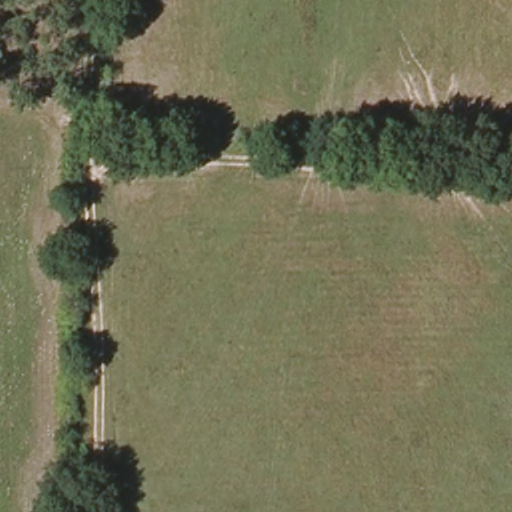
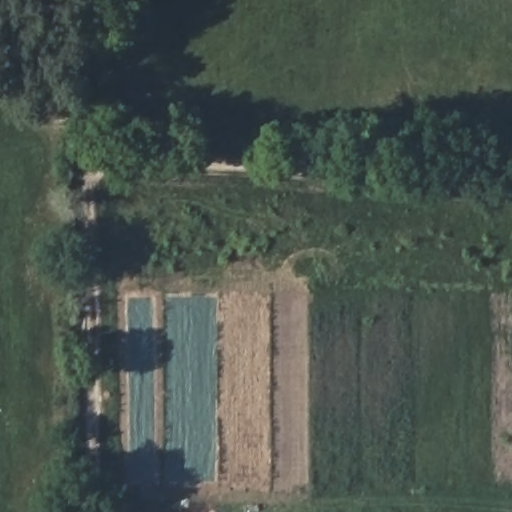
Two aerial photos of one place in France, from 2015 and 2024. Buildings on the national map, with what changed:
[]

